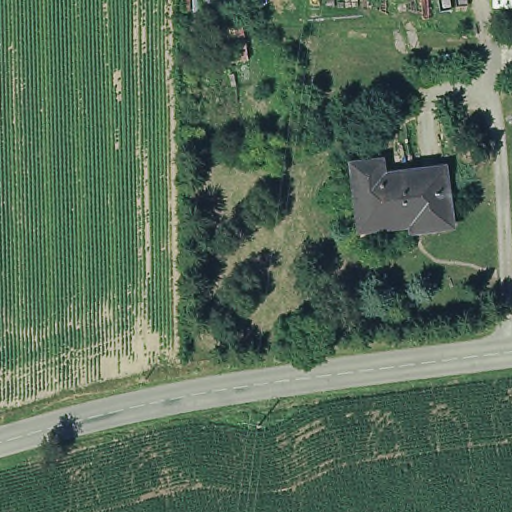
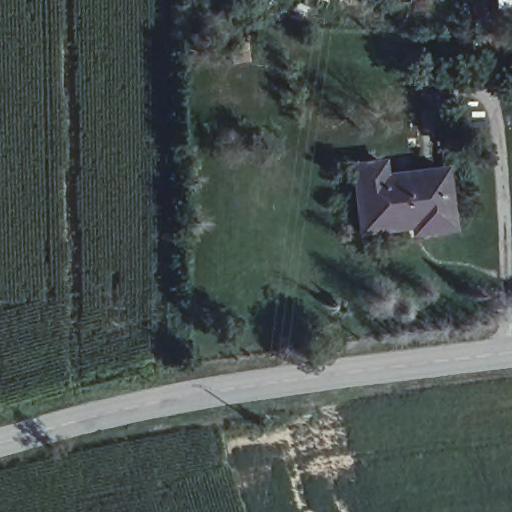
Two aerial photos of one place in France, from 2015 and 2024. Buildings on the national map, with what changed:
unchanged [(381,184),(365,186),(370,227),(359,229),(350,164),(379,160),(380,175),(381,184)]
unchanged [(442,167),(452,227),(425,230),(424,221),(370,227),(365,186),(381,184),(380,175),(442,167)]

